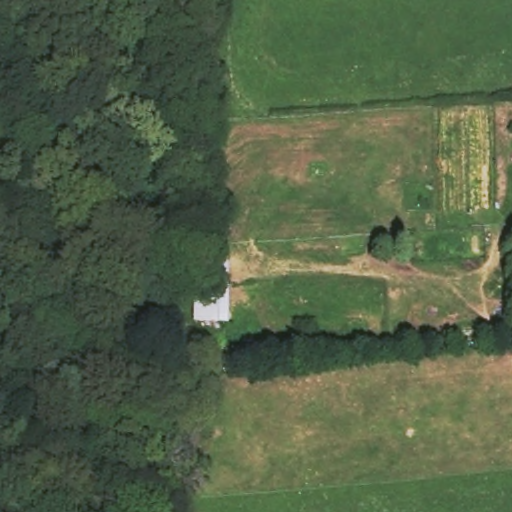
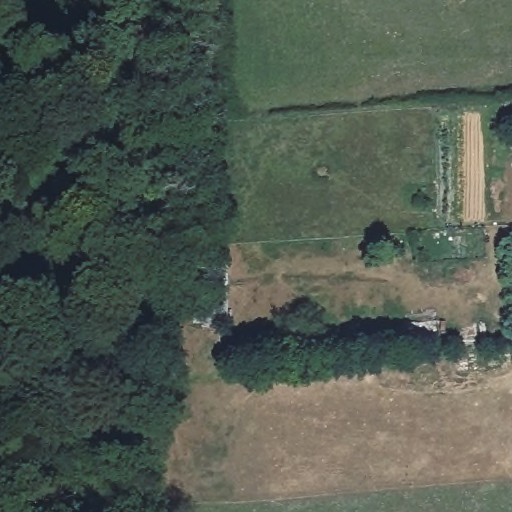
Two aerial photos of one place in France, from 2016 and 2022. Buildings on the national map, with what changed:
unchanged [(194,329),(191,264),(230,261),(230,327),(194,329)]

